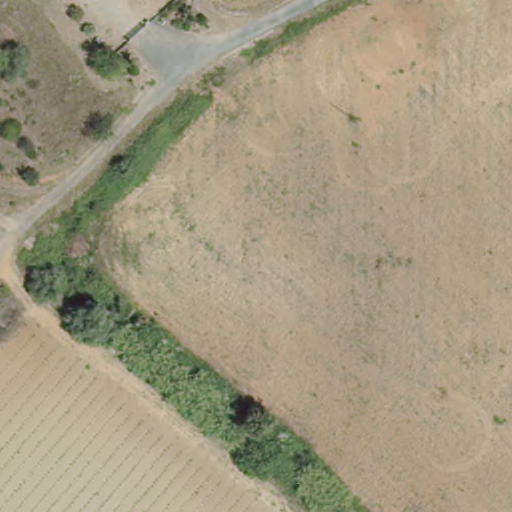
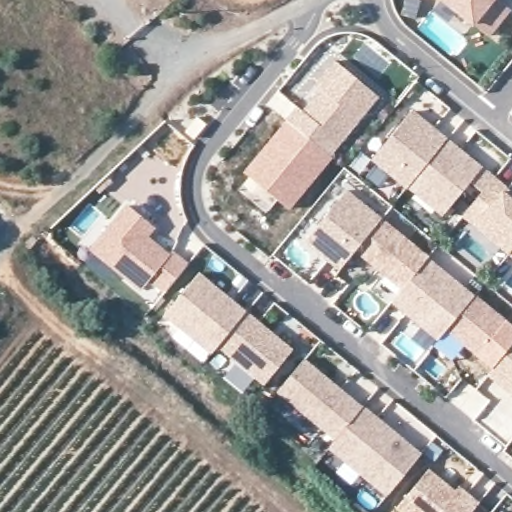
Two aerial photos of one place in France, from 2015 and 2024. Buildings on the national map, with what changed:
new [(512,1),(512,20),(499,36),(458,0),(511,0),(512,1)]
new [(367,93),(352,110),(325,143),(282,107),(291,95),(297,100),(315,78),(309,74),(324,57),(358,86),(367,93)]
new [(404,175),(369,146),(409,99),(443,128),(404,175)]
new [(283,196),(238,158),(282,107),(327,145),(283,196)]
new [(444,127),(478,156),(438,204),(404,175),(444,127)]
new [(512,190),(512,234),(505,244),(458,205),(490,166),(502,177),(500,180),(512,190)]
new [(334,258),(300,229),(341,180),(375,209),(334,258)]
new [(165,239),(180,251),(157,278),(143,266),(135,276),(85,234),(122,191),(135,202),(122,218),(127,213),(136,221),(162,243),(165,239)]
new [(396,279),(349,240),(377,207),(424,246),(396,279)]
new [(505,244),(512,234),(512,250),(505,244)]
new [(425,338),(379,299),(424,246),(470,285),(425,338)]
new [(239,299),(209,335),(163,297),(194,260),(220,283),(217,288),(222,292),(226,288),(239,299)]
new [(509,318),(479,353),(440,320),(470,285),(509,318)]
new [(285,338),(257,372),(210,333),(239,299),(285,338)]
new [(483,364),(512,329),(512,388),(483,364)]
new [(355,396),(328,429),(270,380),(297,348),(355,396)]
new [(414,445),(380,485),(322,436),(355,396),(414,445)]
new [(457,512),(405,512),(389,499),(422,460),(448,482),(452,477),(472,494),(457,512)]
new [(491,512),(476,512),(482,505),(491,512)]

